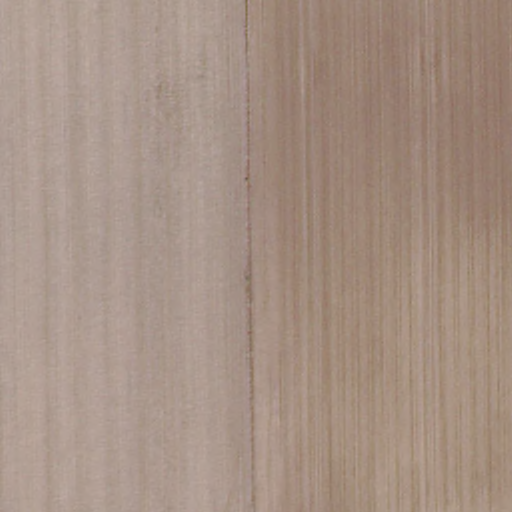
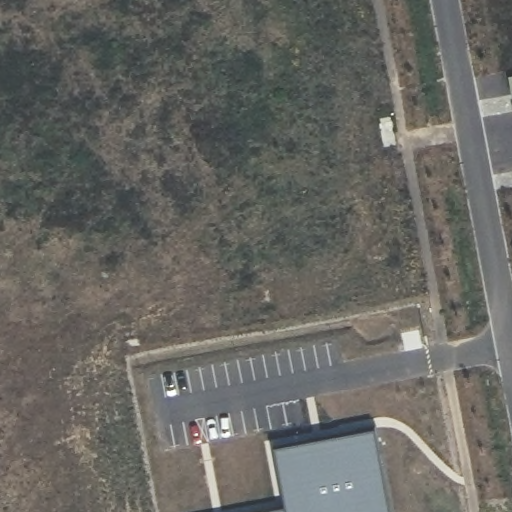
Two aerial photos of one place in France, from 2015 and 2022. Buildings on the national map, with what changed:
new [(285,509),(273,450),(376,433),(392,512),(270,512),(285,509)]

